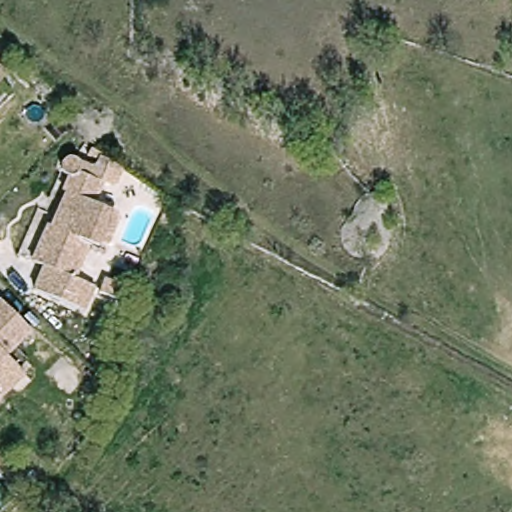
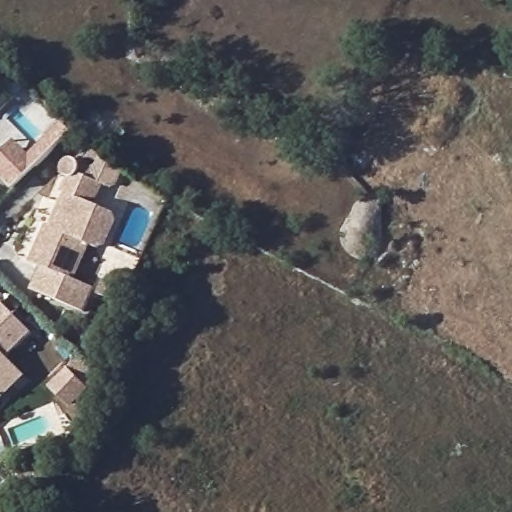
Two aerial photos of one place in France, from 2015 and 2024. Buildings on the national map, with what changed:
unchanged [(0,84),(4,88),(0,91),(0,84)]
new [(17,139),(32,154),(52,134),(61,144),(33,173),(18,188),(0,169),(0,156),(7,149),(17,139)]
unchanged [(85,313),(31,291),(41,267),(30,263),(45,227),(49,229),(64,196),(60,195),(69,178),(64,176),(61,170),(61,163),(65,159),(70,158),(76,161),(77,162),(78,164),(80,170),(79,173),(98,182),(106,162),(123,170),(113,192),(101,187),(95,206),(113,214),(116,222),(105,248),(96,251),(90,248),(74,281),(95,289),(85,313)]
unchanged [(36,333),(0,368),(0,304),(4,301),(36,333)]
unchanged [(0,396),(2,398),(0,399),(0,396)]

